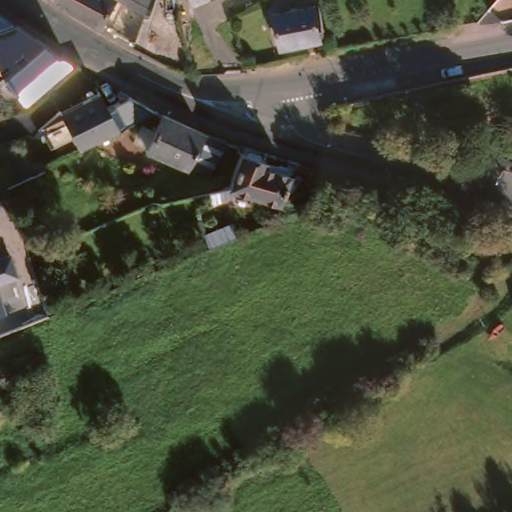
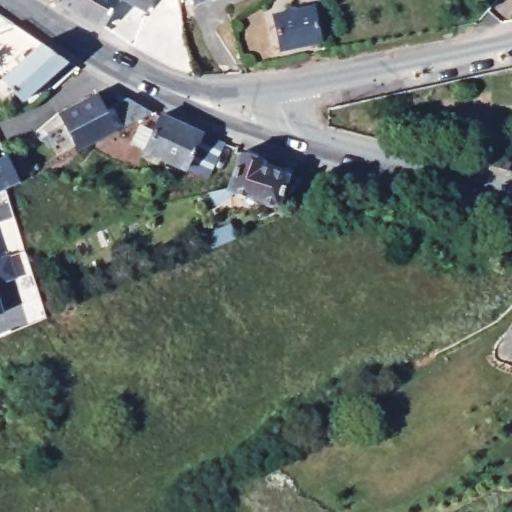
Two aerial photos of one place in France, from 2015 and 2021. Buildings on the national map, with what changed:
unchanged [(47,0),(52,0),(50,2),(47,0)]
unchanged [(102,28),(53,0),(120,0),(102,28)]
unchanged [(147,11),(125,0),(151,0),(147,11)]
unchanged [(197,5),(195,0),(209,0),(197,5)]
unchanged [(321,36),(315,39),(316,42),(275,50),(268,15),(313,6),(321,36)]
unchanged [(4,37),(0,39),(0,18),(20,31),(4,37)]
unchanged [(50,82),(29,101),(8,78),(47,44),(75,62),(50,82)]
unchanged [(96,90),(107,104),(127,95),(147,110),(76,150),(59,110),(96,90)]
unchanged [(184,172),(138,154),(153,120),(154,119),(155,119),(200,136),(184,172)]
unchanged [(249,184),(216,195),(213,180),(235,171),(245,144),(273,155),(270,161),(295,170),(282,198),(249,184)]
new [(21,183),(0,193),(0,157),(6,154),(21,183)]
unchanged [(201,242),(194,227),(221,215),(228,230),(201,242)]
unchanged [(11,257),(17,278),(0,283),(0,260),(11,257)]
unchanged [(4,313),(0,315),(0,298),(4,313)]

